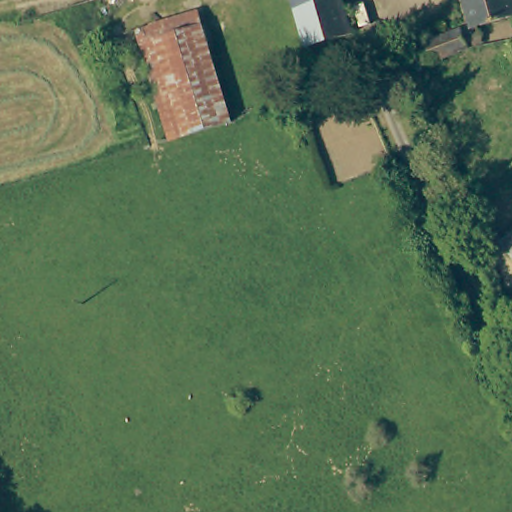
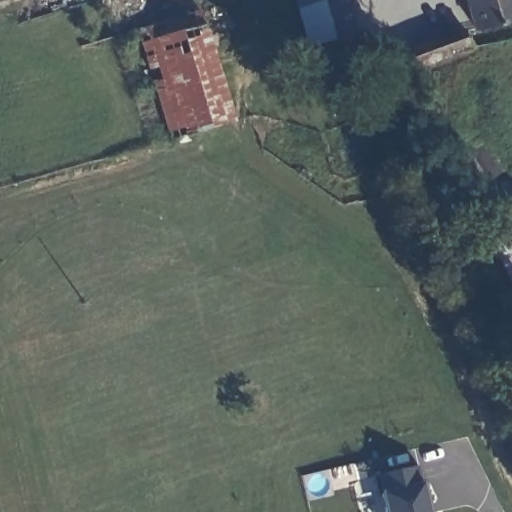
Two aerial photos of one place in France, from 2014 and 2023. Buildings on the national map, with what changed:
unchanged [(356,32),(307,49),(291,0),(346,0),(356,32)]
unchanged [(512,17),(488,25),(478,0),(512,0),(512,17)]
unchanged [(179,140),(133,31),(192,7),(238,115),(184,137),(179,140)]
unchanged [(464,25),(471,42),(448,49),(426,56),(420,36),(464,25)]
unchanged [(480,235),(512,212),(512,276),(503,282),(480,235)]
new [(372,476),(417,466),(422,482),(430,512),(383,512),(378,492),(372,476)]

